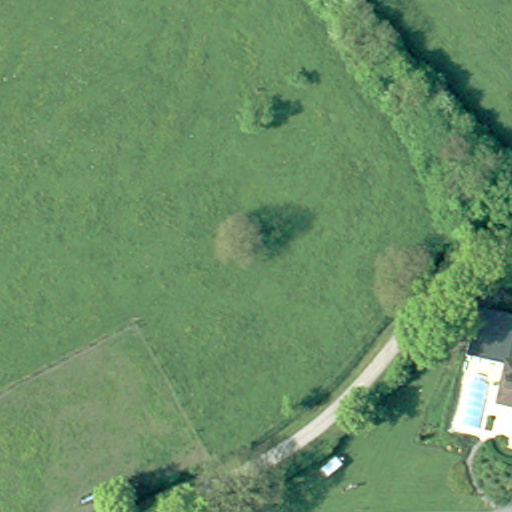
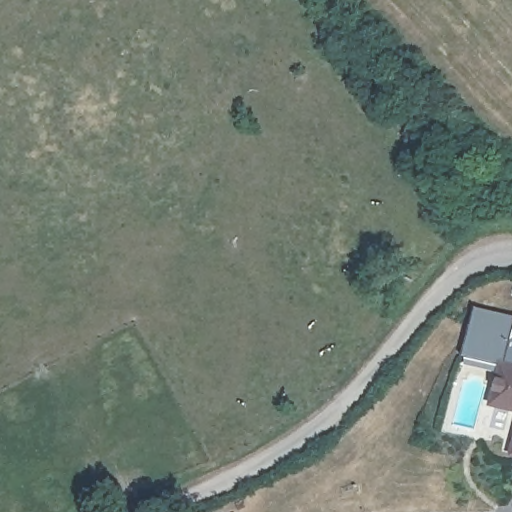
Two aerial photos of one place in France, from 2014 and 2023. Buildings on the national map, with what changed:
new [(475,305),(512,313),(512,352),(510,364),(504,363),(503,366),(465,357),(475,305)]
unchanged [(510,364),(512,352),(512,365),(510,364)]
unchanged [(494,402),(504,363),(510,364),(512,365),(512,407),(494,402)]

